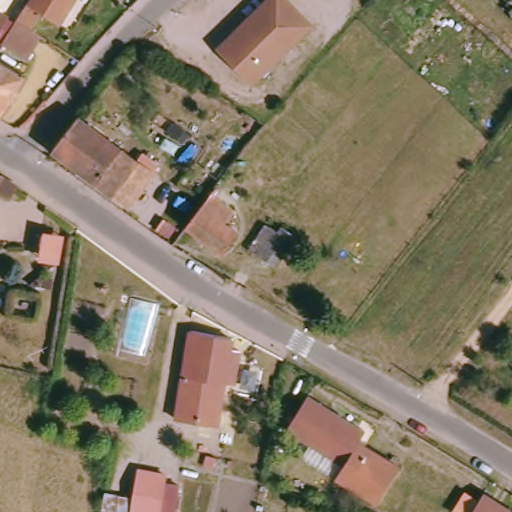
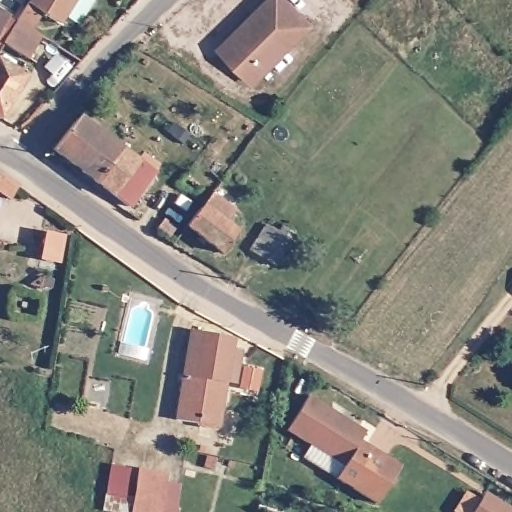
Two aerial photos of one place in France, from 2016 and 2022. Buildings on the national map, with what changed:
unchanged [(57,24),(42,13),(27,4),(29,0),(73,0),(59,22),(57,24)]
unchanged [(229,54),(242,37),(271,0),(294,0),(299,5),(316,18),(266,83),(229,54)]
unchanged [(10,11),(0,26),(0,5),(10,11)]
unchanged [(32,31),(40,36),(26,57),(2,42),(16,20),(32,31)]
unchanged [(31,77),(3,117),(0,114),(0,56),(31,77)]
unchanged [(142,201),(53,142),(73,120),(162,178),(142,201)]
unchanged [(22,184),(13,196),(0,194),(0,168),(22,184)]
unchanged [(217,191),(246,213),(238,222),(242,226),(238,232),(244,236),(224,258),(184,229),(217,191)]
unchanged [(287,236),(291,230),(303,238),(279,270),(256,252),(276,227),(287,236)]
unchanged [(239,347),(231,381),(222,425),(181,417),(200,329),(209,332),(232,337),(241,339),(239,347)]
unchanged [(379,501),(366,493),(338,477),(346,463),(288,430),(307,399),(366,430),(360,441),(384,456),(400,465),(379,501)]
unchanged [(132,496),(137,468),(168,475),(162,512),(154,512),(130,507),(105,502),(107,491),(132,496)]
unchanged [(487,497),(509,512),(477,512),(487,497)]

